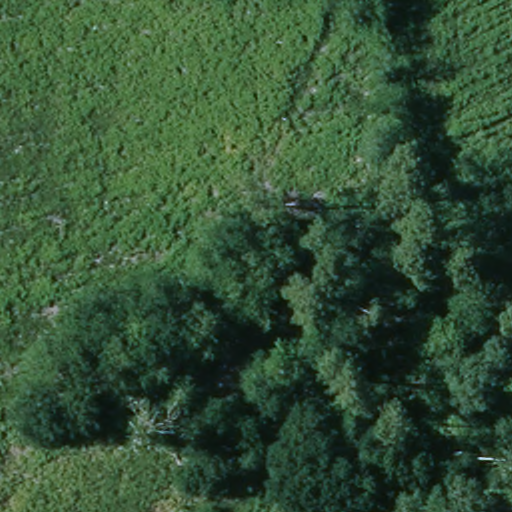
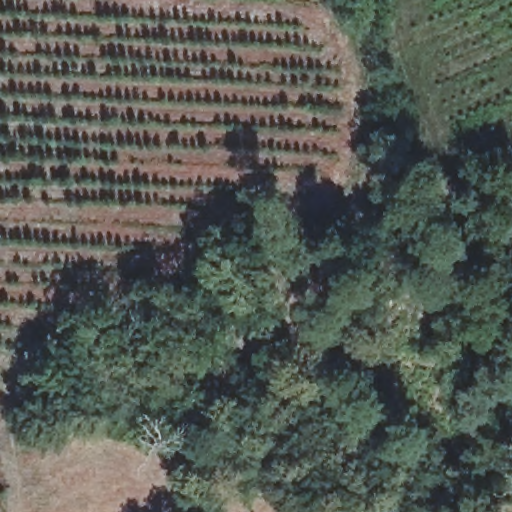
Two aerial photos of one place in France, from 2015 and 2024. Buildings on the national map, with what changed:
unchanged [(203,374),(249,371),(266,370),(268,413),(251,415),(204,418),(203,374)]
unchanged [(371,486),(334,491),(325,423),(363,419),(371,486)]

